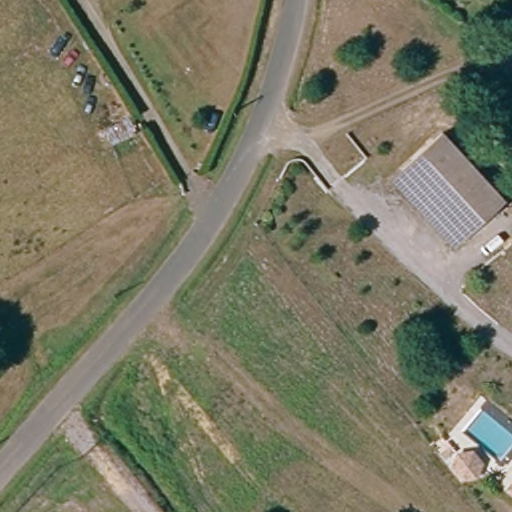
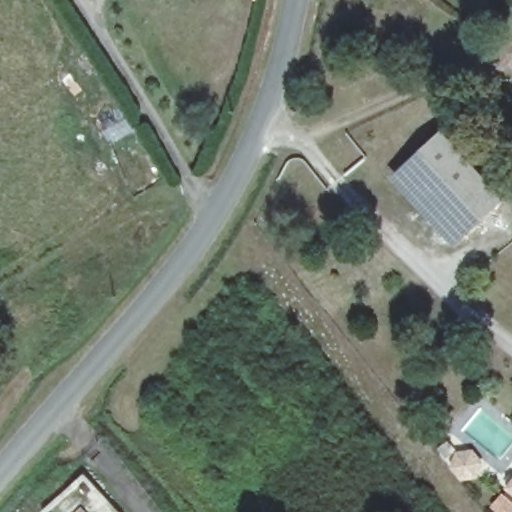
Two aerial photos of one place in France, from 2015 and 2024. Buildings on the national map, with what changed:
unchanged [(120,158),(119,159),(111,144),(140,129),(147,144),(120,158)]
unchanged [(402,177),(455,133),(512,202),(512,206),(461,248),(402,177)]

